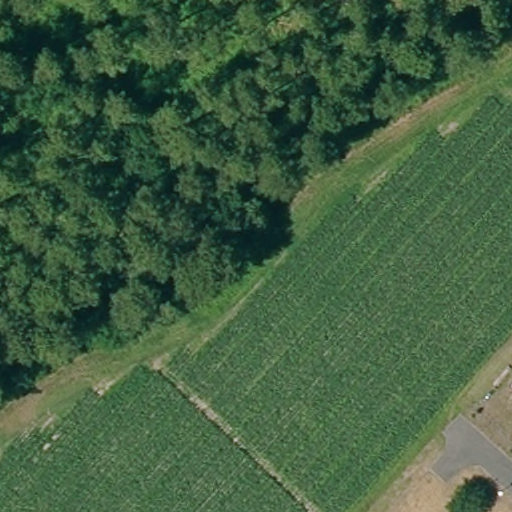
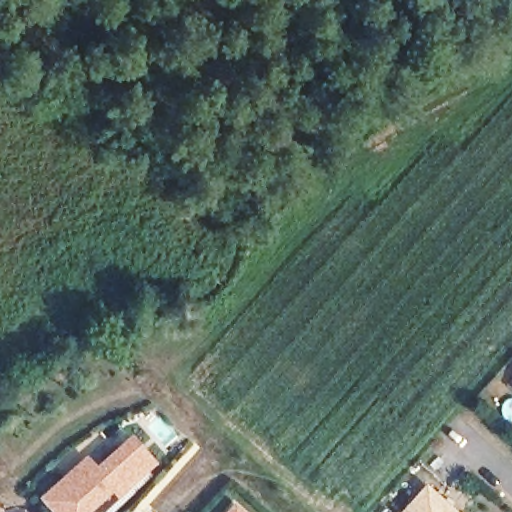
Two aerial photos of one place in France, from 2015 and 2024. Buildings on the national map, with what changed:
new [(39,498),(86,456),(95,466),(131,435),(157,463),(120,496),(112,488),(87,512),(53,512),(39,498)]
new [(430,491),(454,512),(412,512),(430,491)]
new [(234,502),(245,512),(226,512),(234,502)]

